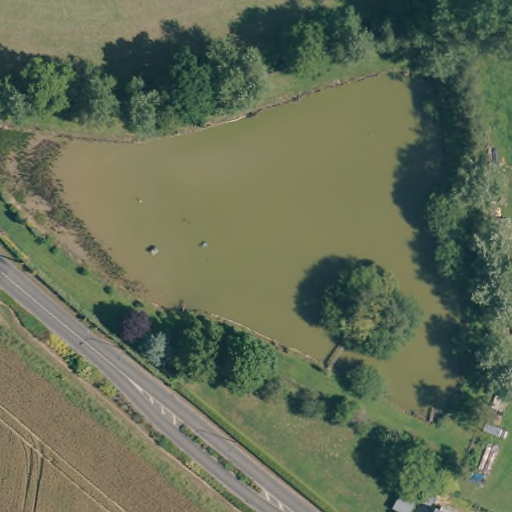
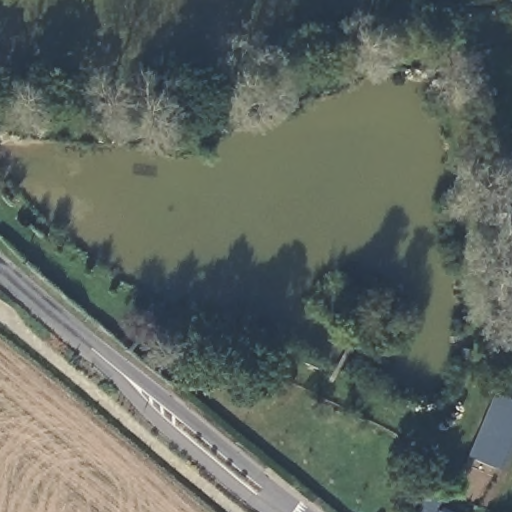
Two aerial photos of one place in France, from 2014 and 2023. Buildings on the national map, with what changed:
new [(492,391),(512,399),(512,457),(506,471),(468,455),(492,391)]
unchanged [(417,494),(408,512),(399,512),(393,508),(405,487),(417,494)]

